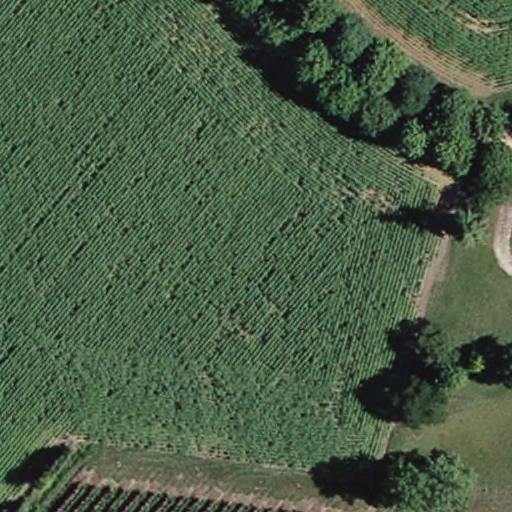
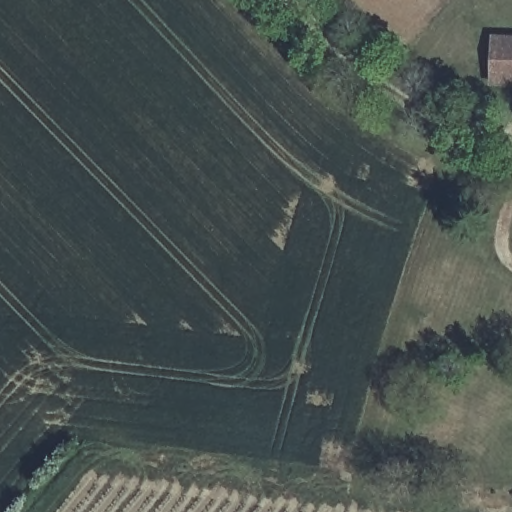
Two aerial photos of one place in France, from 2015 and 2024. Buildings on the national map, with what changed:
new [(493,85),(495,40),(512,40),(512,86),(493,85)]

